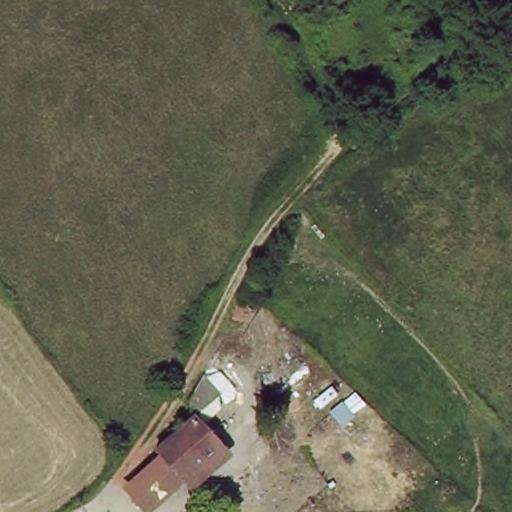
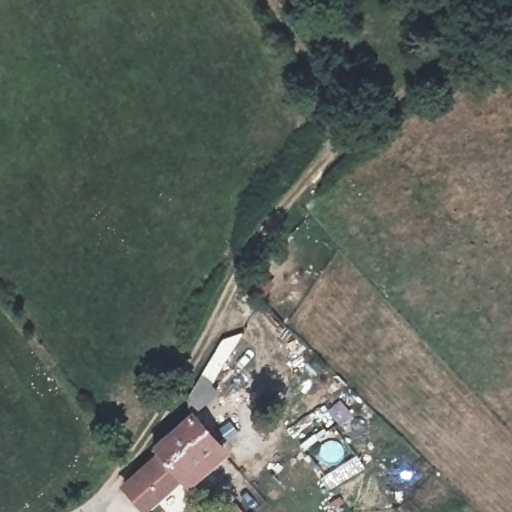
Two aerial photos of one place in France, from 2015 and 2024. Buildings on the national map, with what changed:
unchanged [(322,0),(325,0),(344,21),(319,43),(300,20),(322,0)]
unchanged [(186,414),(218,449),(145,512),(122,490),(125,484),(158,452),(150,444),(186,414)]

